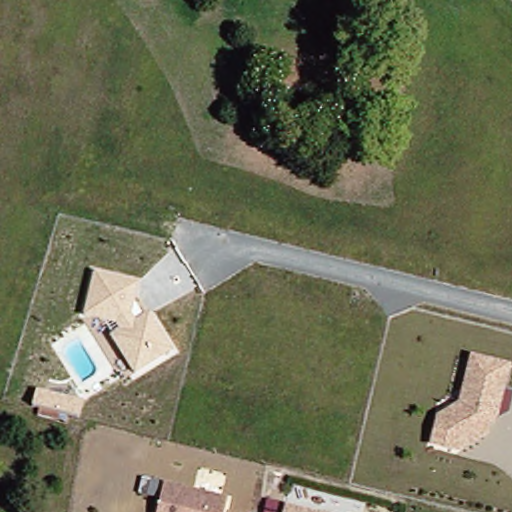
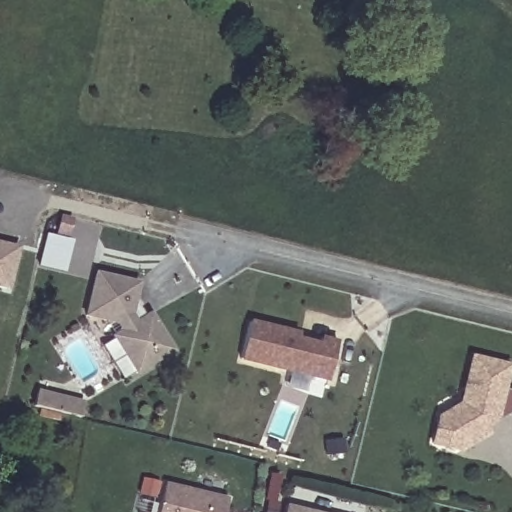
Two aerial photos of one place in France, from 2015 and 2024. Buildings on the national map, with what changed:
new [(15,249),(4,290),(0,289),(0,245),(15,249)]
unchanged [(133,377),(109,337),(118,331),(114,326),(84,318),(93,272),(140,281),(131,316),(135,321),(149,314),(173,352),(133,377)]
new [(287,332),(296,334),(294,340),(316,345),(317,339),(335,343),(326,384),(236,364),(246,323),(287,332)]
unchanged [(462,404),(472,358),(509,368),(493,429),(461,450),(439,430),(441,416),(462,404)]
unchanged [(77,419),(32,407),(36,391),(82,401),(77,419)]
unchanged [(164,486),(227,501),(224,512),(158,512),(164,486)]
unchanged [(284,509),(295,512),(283,512),(284,509)]

